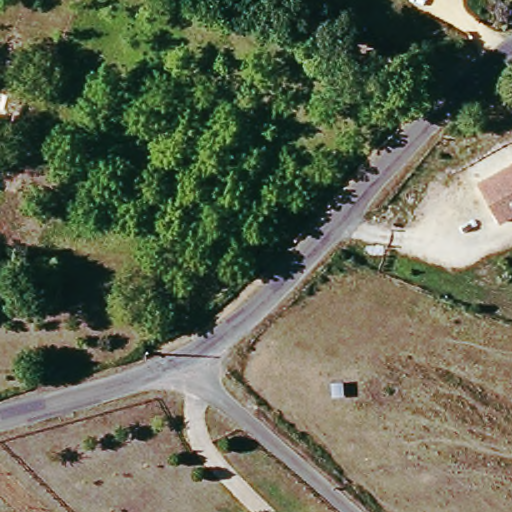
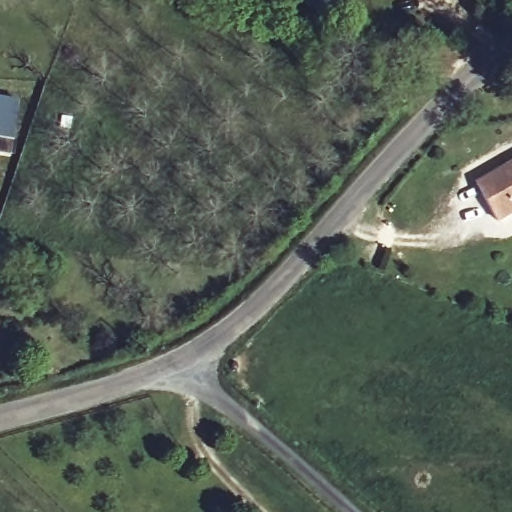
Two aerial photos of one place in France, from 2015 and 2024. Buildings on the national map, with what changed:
new [(0,153),(0,138),(0,96),(25,99),(17,140),(14,155),(0,153)]
unchanged [(482,187),(512,170),(512,219),(504,224),(482,187)]

